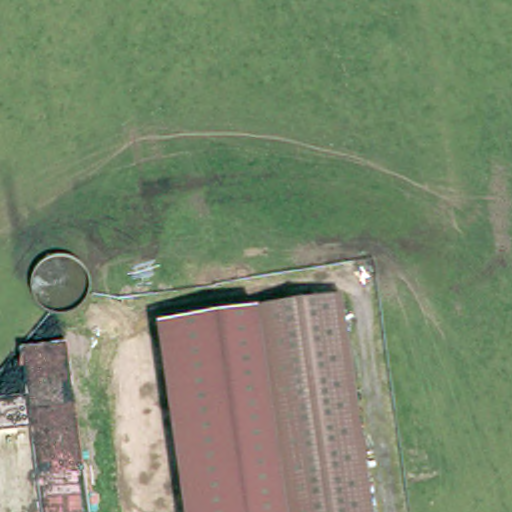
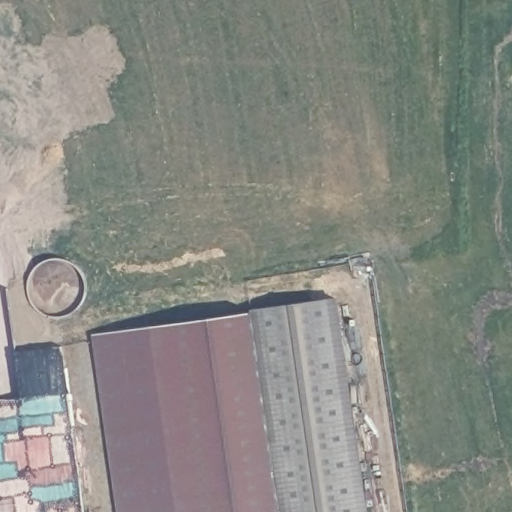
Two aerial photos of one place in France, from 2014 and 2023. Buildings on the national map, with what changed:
unchanged [(307,303),(338,298),(369,512),(281,512),(252,311),(307,303)]
unchanged [(281,512),(181,512),(153,325),(158,325),(200,318),(241,312),(252,311),(281,512)]
new [(153,325),(181,512),(120,512),(93,328),(153,320),(153,325)]

